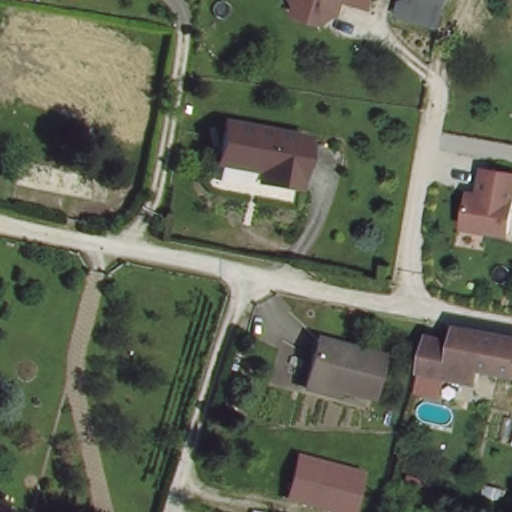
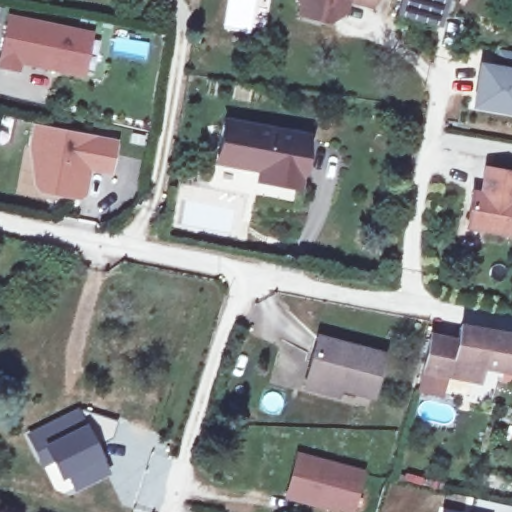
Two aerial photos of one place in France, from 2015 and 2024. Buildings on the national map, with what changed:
unchanged [(321,16),(292,8),(295,0),(336,0),(333,10),(321,16)]
unchanged [(363,0),(367,0),(367,1),(363,0)]
unchanged [(444,0),(437,26),(397,14),(402,0),(444,0)]
unchanged [(92,33),(83,75),(20,62),(18,70),(0,67),(0,59),(9,16),(92,33)]
new [(481,65),(497,68),(500,51),(512,53),(512,111),(474,105),(481,65)]
new [(32,124),(118,140),(111,176),(90,173),(87,195),(77,201),(37,192),(32,182),(27,144),(32,124)]
unchanged [(307,142),(297,192),(257,185),(260,174),(216,166),(224,126),(307,142)]
unchanged [(467,187),(479,189),(480,183),(477,183),(481,163),(512,169),(512,181),(504,228),(461,221),(467,187)]
unchanged [(460,347),(465,326),(512,335),(512,378),(479,369),(475,383),(445,375),(442,382),(433,379),(435,372),(425,369),(433,340),(460,347)]
unchanged [(303,387),(306,375),(312,355),(317,337),(381,356),(368,398),(337,388),(335,396),(303,387)]
new [(80,405),(110,471),(72,490),(66,477),(60,480),(50,460),(41,465),(25,433),(80,405)]
unchanged [(322,507),(284,496),(296,454),(359,473),(347,511),(326,505),(322,504),(322,507)]

